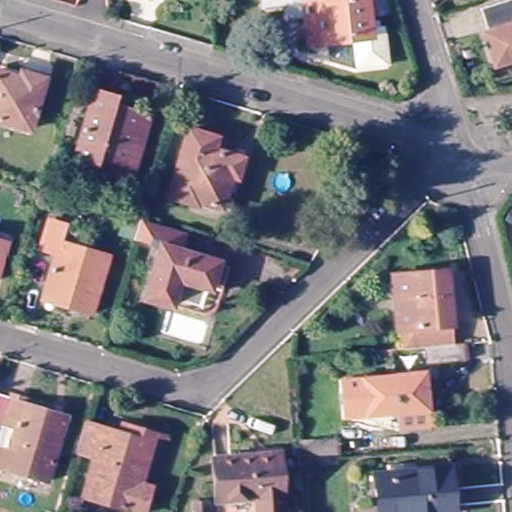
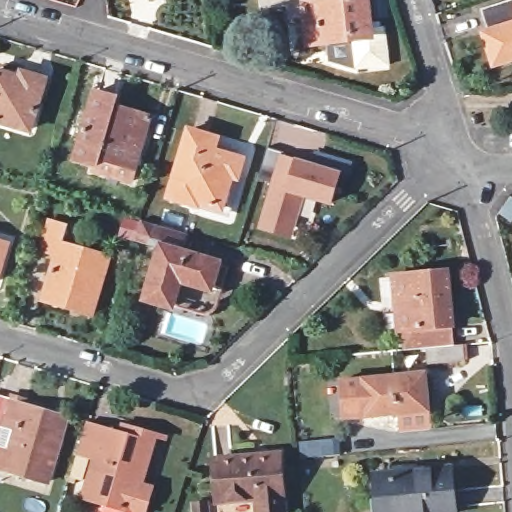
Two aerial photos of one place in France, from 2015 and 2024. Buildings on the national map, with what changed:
unchanged [(363,26),(376,25),(380,63),(347,67),(317,61),(314,41),(301,42),(298,17),(283,18),(282,7),(261,10),(260,0),(360,0),(363,26)]
unchanged [(488,40),(494,38),(486,15),(512,7),(512,68),(500,72),(496,60),(488,40)]
unchanged [(44,83),(30,132),(0,123),(0,75),(3,76),(4,71),(21,76),(20,81),(22,76),(44,83)]
unchanged [(117,96),(114,104),(149,114),(129,183),(94,172),(95,164),(73,156),(93,89),(117,96)]
unchanged [(232,213),(220,210),(196,203),(195,206),(168,199),(187,132),(215,141),(211,153),(241,162),(235,181),(240,182),(232,213)]
new [(271,185),(256,181),(255,181),(264,149),(282,153),(280,158),(307,166),(312,151),(350,163),(346,178),(336,175),(328,204),(300,197),(290,229),(288,238),(258,229),(260,221),(271,185)]
unchanged [(44,294),(56,256),(40,251),(49,223),(66,227),(62,245),(109,259),(92,316),(74,310),(42,300),(44,294)]
unchanged [(184,244),(178,263),(229,278),(222,303),(181,290),(173,318),(145,309),(160,260),(133,252),(140,231),(184,244)]
unchanged [(7,249),(0,269),(0,246),(7,249)]
unchanged [(429,360),(427,346),(404,348),(396,274),(446,269),(455,343),(467,342),(468,357),(429,360)]
unchanged [(423,374),(429,426),(398,429),(395,416),(345,421),(340,383),(423,374)]
unchanged [(0,470),(0,430),(7,403),(56,416),(67,420),(60,445),(47,486),(0,470)]
unchanged [(146,435),(169,441),(155,490),(164,495),(160,512),(125,512),(99,505),(110,466),(91,460),(100,430),(133,441),(136,432),(146,435)]
unchanged [(338,441),(340,457),(300,460),(299,444),(338,441)]
unchanged [(224,501),(221,458),(285,454),(290,512),(264,512),(261,498),(224,501)]
unchanged [(375,479),(453,471),(457,512),(378,512),(377,503),(375,479)]

